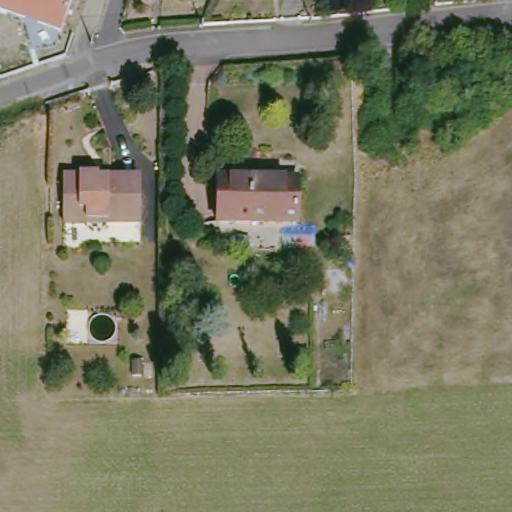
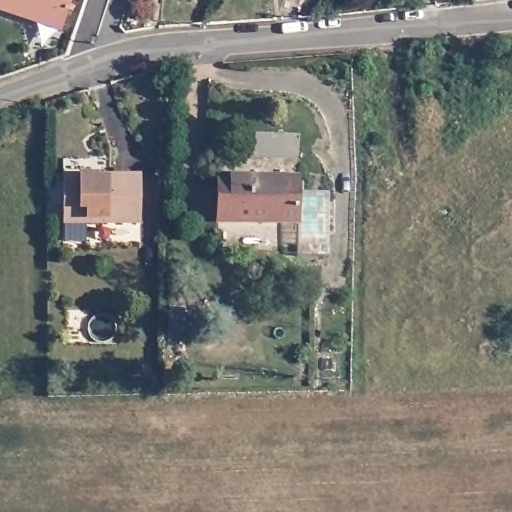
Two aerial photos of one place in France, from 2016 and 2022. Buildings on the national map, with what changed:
unchanged [(0,9),(0,0),(71,0),(61,29),(0,9)]
unchanged [(138,224),(62,222),(64,175),(140,177),(138,224)]
unchanged [(300,219),(220,218),(221,176),(301,177),(300,219)]

